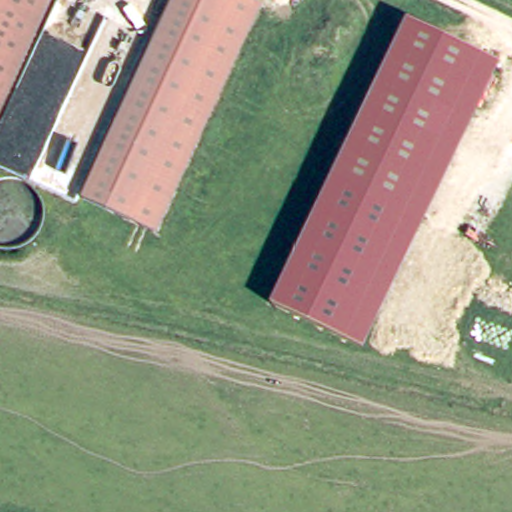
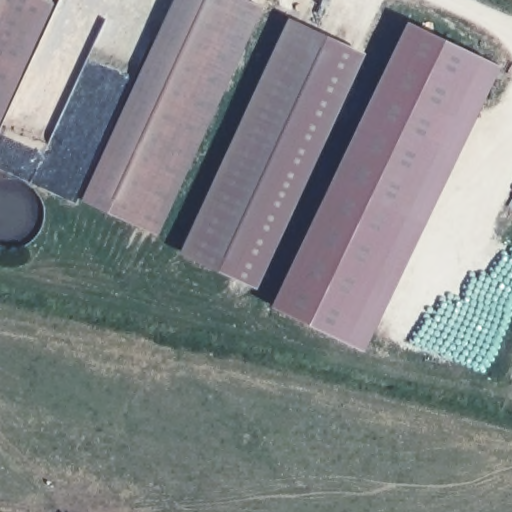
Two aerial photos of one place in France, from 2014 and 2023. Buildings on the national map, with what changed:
unchanged [(0,128),(0,0),(41,0),(53,5),(0,128)]
unchanged [(175,0),(237,0),(260,10),(161,240),(87,206),(175,0)]
new [(288,19),(338,42),(229,273),(178,250),(288,19)]
unchanged [(500,66),(424,224),(333,179),(407,19),(500,66)]
new [(338,42),(362,54),(253,285),(229,273),(338,42)]
unchanged [(424,224),(368,352),(270,305),(333,179),(424,224)]

